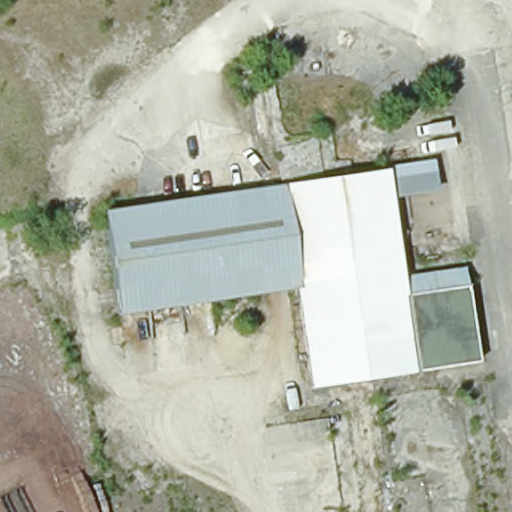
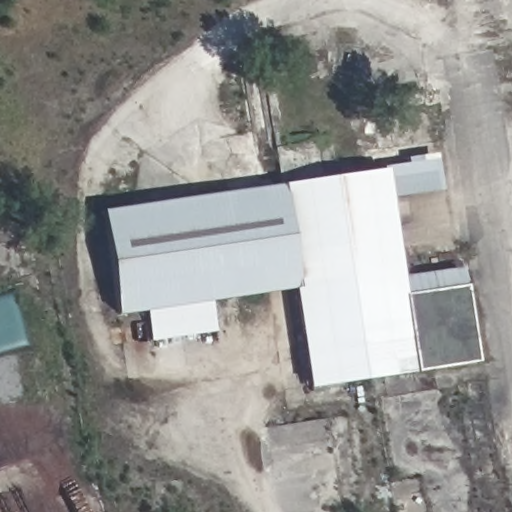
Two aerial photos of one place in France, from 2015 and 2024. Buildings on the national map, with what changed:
unchanged [(387,171),(437,163),(441,190),(392,197),(387,171)]
unchanged [(95,212),(385,171),(105,254),(95,212)]
unchanged [(295,283),(190,299),(119,309),(105,254),(385,171),(416,371),(366,377),(310,384),(295,283)]
unchanged [(461,266),(462,285),(467,285),(478,361),(416,371),(401,274),(461,266)]
new [(190,299),(209,296),(217,331),(151,341),(145,305),(190,299)]

